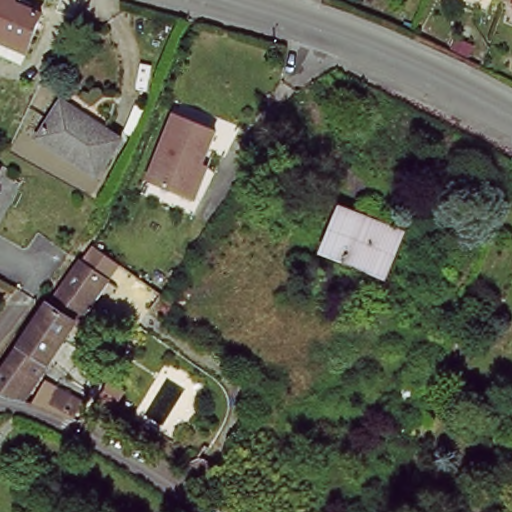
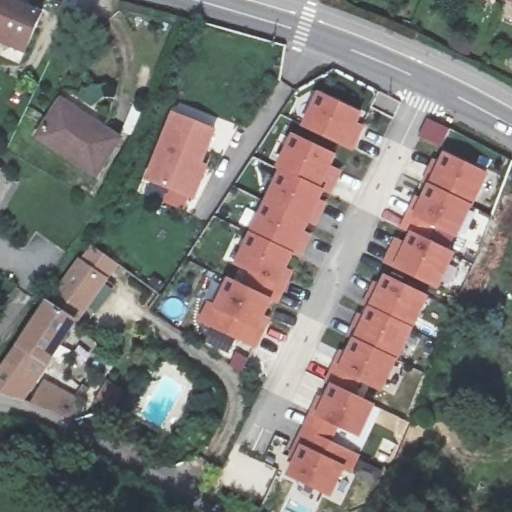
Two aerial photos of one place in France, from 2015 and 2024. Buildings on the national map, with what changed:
unchanged [(8,3),(37,17),(18,56),(0,47),(0,0),(9,0),(8,3)]
new [(363,113),(345,148),(301,127),(317,93),(363,113)]
unchanged [(76,118),(79,115),(118,138),(95,177),(35,141),(55,106),(76,118)]
unchanged [(188,202),(178,197),(145,179),(177,117),(215,135),(198,168),(204,171),(188,202)]
new [(421,137),(430,119),(452,130),(443,148),(421,137)]
new [(336,156),(320,190),(324,192),(271,300),(259,330),(253,347),(197,321),(203,306),(212,309),(227,278),(238,283),(243,270),(233,266),(278,170),(275,169),(293,135),(336,156)]
new [(488,172),(458,239),(435,229),(430,241),(456,255),(439,290),(393,268),(411,234),(398,230),(412,198),(421,200),(443,155),(488,172)]
demolished [(397,237),(380,278),(321,254),(338,213),(397,237)]
unchanged [(80,261),(105,278),(48,365),(23,403),(0,393),(0,380),(23,346),(50,304),(53,303),(80,261)]
new [(431,297),(385,393),(359,381),(353,394),(376,405),(361,438),(338,428),(332,443),(359,454),(336,501),(285,478),(299,448),(293,445),(338,350),(345,353),(383,276),(431,297)]

